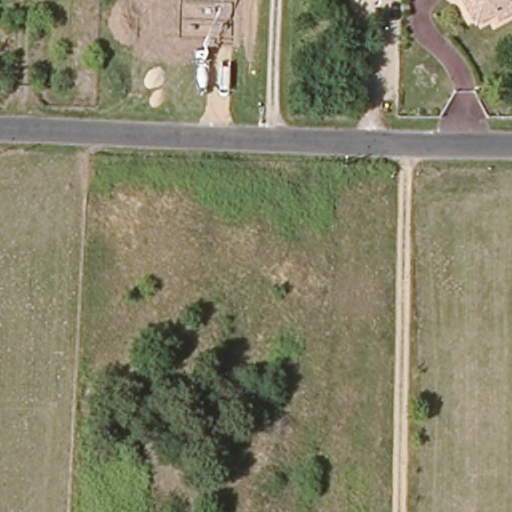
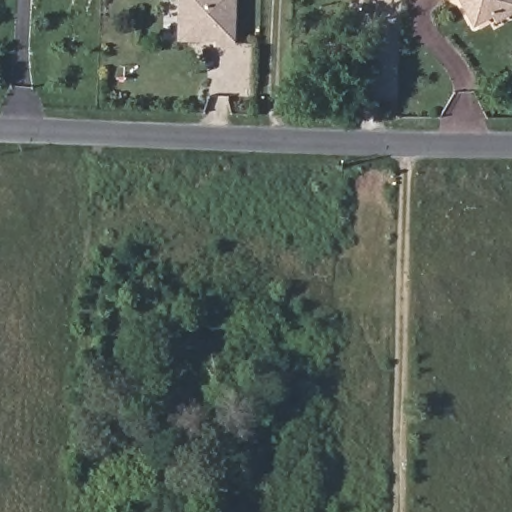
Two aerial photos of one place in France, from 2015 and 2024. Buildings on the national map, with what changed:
new [(237,44),(219,44),(219,39),(183,38),(184,0),(237,0),(237,44)]
unchanged [(498,21),(493,14),(474,26),(459,2),(460,0),(512,0),(512,13),(498,21)]

